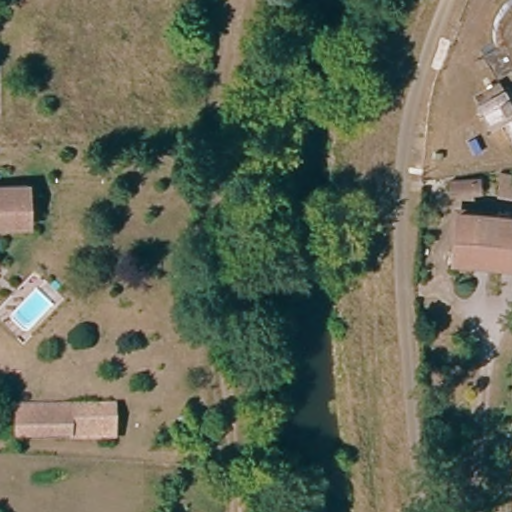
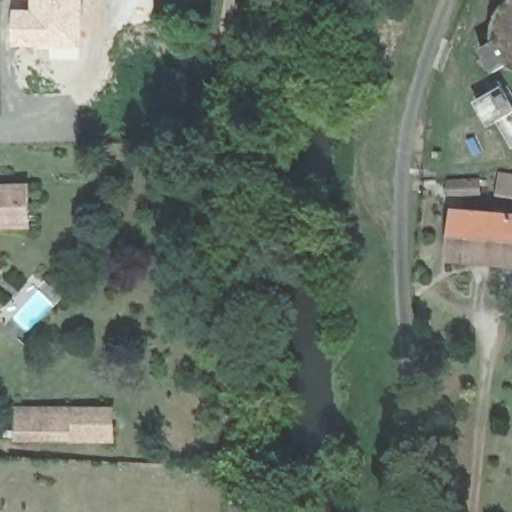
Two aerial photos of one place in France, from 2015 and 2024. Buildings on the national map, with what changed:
new [(31,8),(31,0),(84,0),(82,48),(15,46),(14,8),(31,8)]
unchanged [(494,118),(485,123),(471,96),(498,82),(512,109),(512,146),(508,148),(494,118)]
demolished [(470,174),(442,173),(443,164),(471,166),(470,174)]
unchanged [(503,171),(512,171),(512,194),(501,194),(503,171)]
unchanged [(24,182),(33,181),(35,223),(23,224),(3,225),(0,222),(0,183),(24,182)]
unchanged [(475,193),(447,192),(448,183),(476,185),(475,193)]
unchanged [(512,267),(501,266),(474,261),(460,259),(462,251),(454,250),(461,212),(512,219),(512,267)]
unchanged [(113,440),(19,440),(20,405),(113,404),(113,440)]

